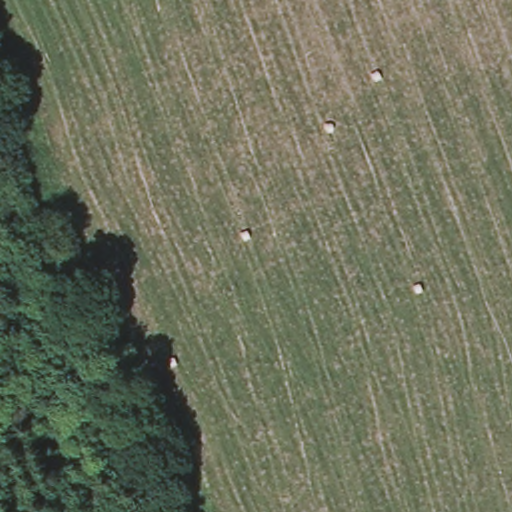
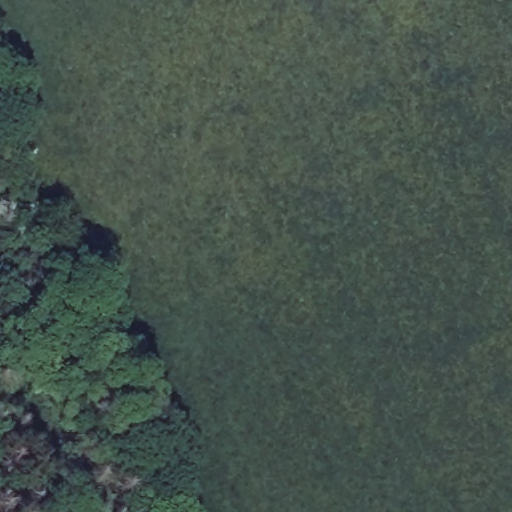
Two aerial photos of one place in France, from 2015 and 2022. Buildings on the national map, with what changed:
[]

